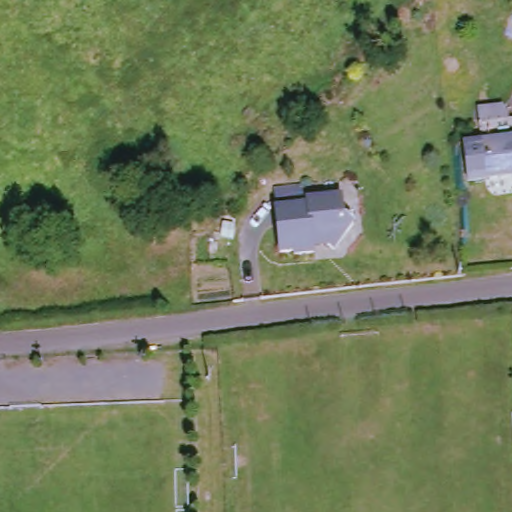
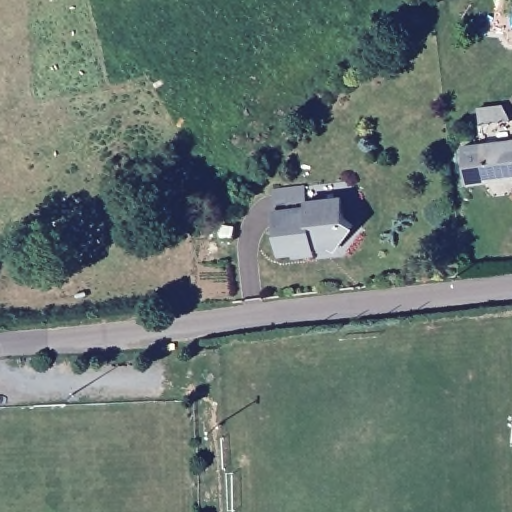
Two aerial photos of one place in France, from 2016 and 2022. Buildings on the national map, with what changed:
unchanged [(487,124),(512,121),(512,178),(494,180),(490,144),(487,124)]
unchanged [(307,207),(307,201),(340,197),(343,218),(353,226),(334,251),(322,242),(312,243),(314,254),(295,256),(294,252),(280,254),(275,210),(307,207)]

